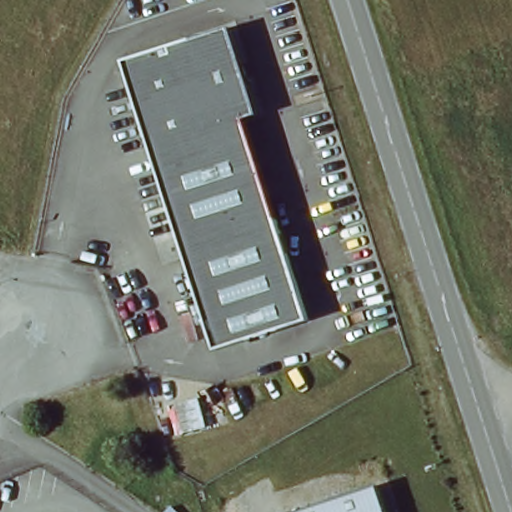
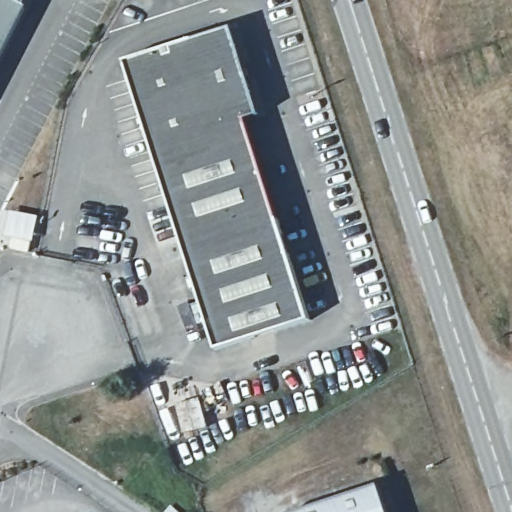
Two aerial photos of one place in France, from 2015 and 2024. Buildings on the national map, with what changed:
new [(31,0),(28,6),(0,61),(0,0),(31,0)]
unchanged [(261,115),(246,120),(310,320),(217,349),(125,61),(232,28),(261,115)]
unchanged [(202,399),(209,429),(185,435),(176,405),(202,399)]
unchanged [(380,485),(388,512),(294,512),(380,485)]

